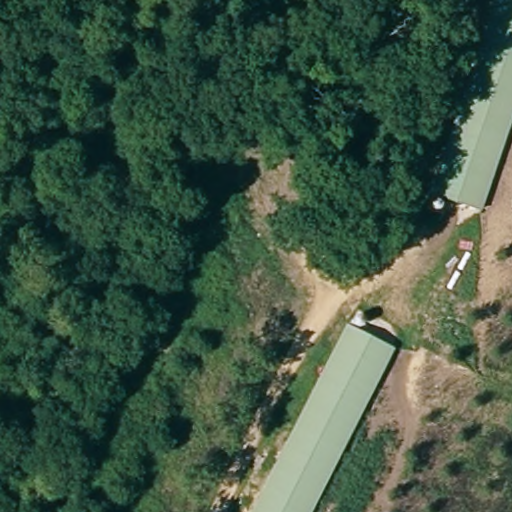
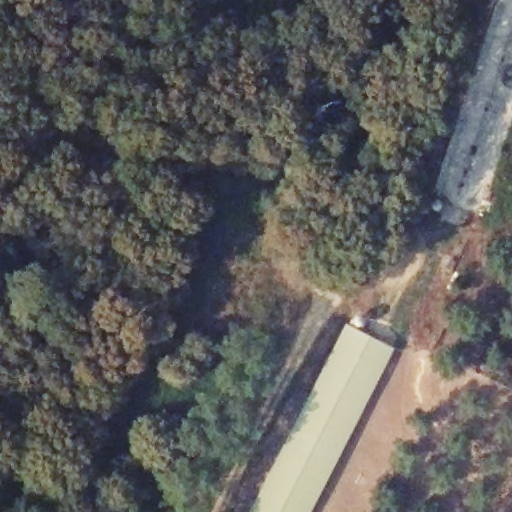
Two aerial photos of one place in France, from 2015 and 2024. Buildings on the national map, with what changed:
unchanged [(489,207),(446,195),(500,0),(512,0),(512,125),(489,207)]
unchanged [(248,512),(343,323),(384,347),(303,512),(248,512)]

